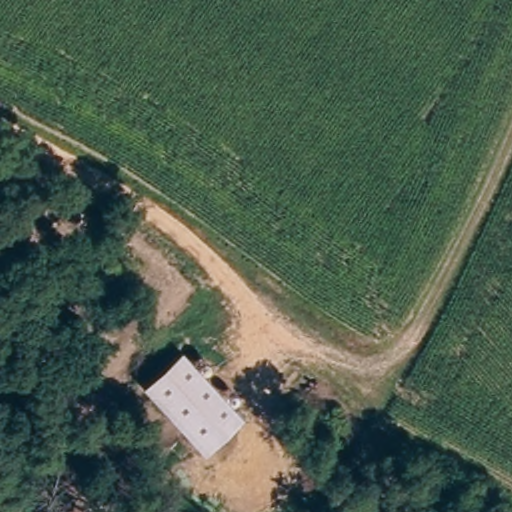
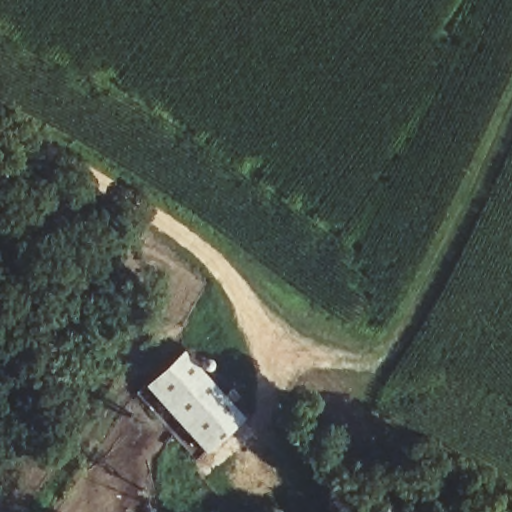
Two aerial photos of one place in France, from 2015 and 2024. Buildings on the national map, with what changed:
unchanged [(180,350),(244,418),(204,455),(142,386),(180,350)]

